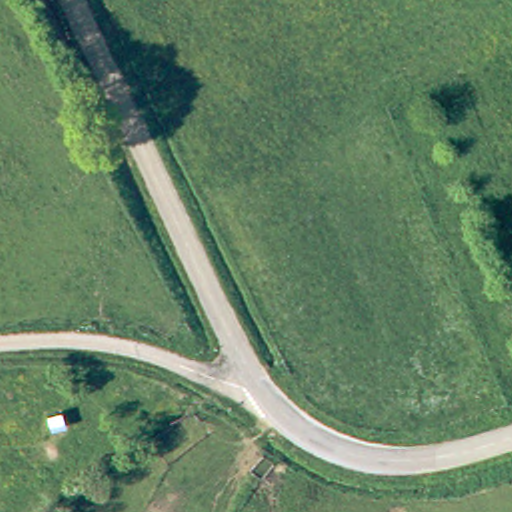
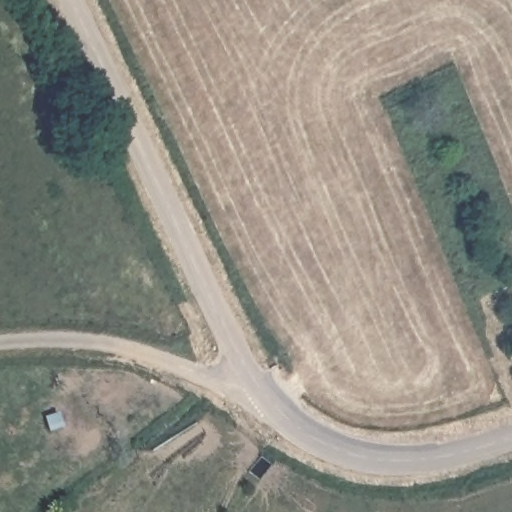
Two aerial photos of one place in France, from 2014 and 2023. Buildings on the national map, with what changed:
[]

